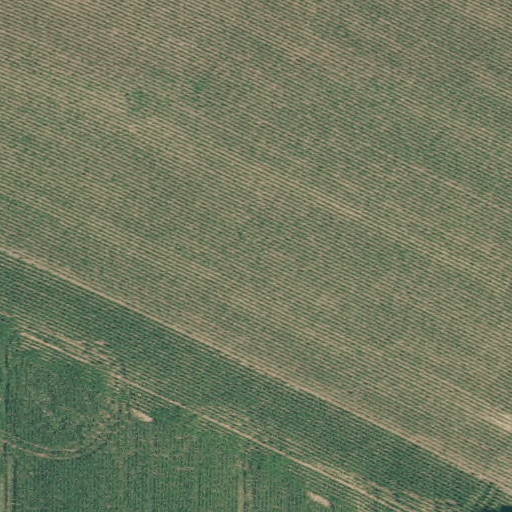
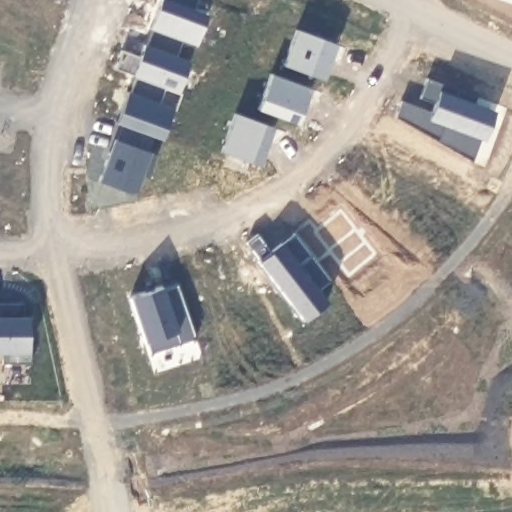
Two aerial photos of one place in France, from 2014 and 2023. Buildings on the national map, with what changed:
new [(153,29),(157,19),(153,18),(160,0),(197,0),(193,10),(205,14),(194,45),(182,41),(151,29),(149,29),(150,28),(153,29)]
new [(121,50),(138,56),(143,44),(145,45),(151,29),(182,41),(176,56),(188,61),(177,92),(135,77),(114,69),(121,50)]
new [(296,30),(345,48),(340,62),(330,58),(322,79),(323,79),(323,80),(283,65),(296,30)]
new [(271,73),(322,92),(313,104),(305,100),(297,122),(298,123),(298,124),(257,109),(271,73)]
new [(126,93),(129,94),(135,77),(177,92),(181,93),(175,110),(171,110),(161,139),(153,136),(123,125),(115,122),(126,93)]
new [(401,101),(430,111),(434,104),(419,98),(427,78),(476,96),(473,103),(494,111),(483,139),(480,138),(471,162),(434,140),(435,137),(415,129),(416,125),(395,117),(401,101)]
new [(235,113),(287,133),(275,143),(267,139),(258,164),(259,165),(258,166),(221,152),(235,113)]
new [(109,152),(112,153),(123,125),(153,136),(147,152),(156,155),(148,178),(141,175),(135,190),(129,193),(98,181),(109,152)]
new [(263,242),(270,251),(294,233),(331,281),(317,291),(326,302),(303,320),(258,261),(260,260),(252,250),(263,242)]
new [(162,287),(163,288),(178,283),(196,338),(150,353),(146,341),(144,342),(130,297),(162,287)]
new [(23,303),(23,318),(28,318),(28,351),(30,351),(30,363),(2,363),(2,352),(0,352),(0,303),(23,303)]

